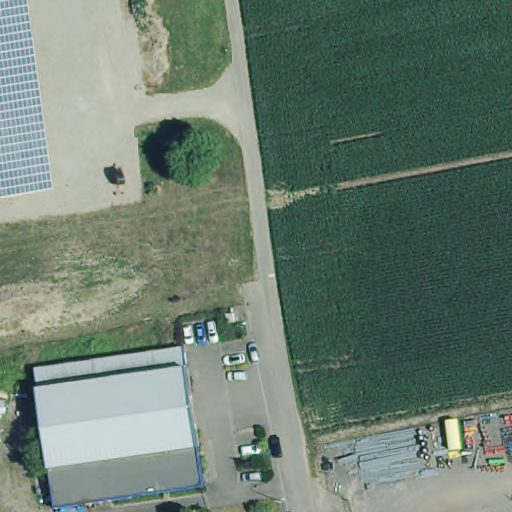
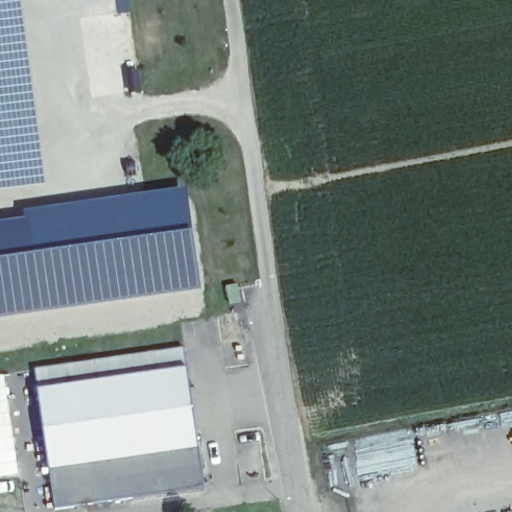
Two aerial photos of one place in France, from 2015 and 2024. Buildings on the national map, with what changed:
unchanged [(48,186),(0,192),(0,0),(22,0),(48,186)]
new [(21,222),(21,215),(179,193),(199,294),(0,322),(0,226),(21,222)]
unchanged [(188,344),(189,353),(194,389),(200,425),(208,483),(58,505),(49,447),(44,411),(39,374),(38,365),(188,344)]
new [(4,374),(18,475),(0,477),(0,375),(4,374)]

